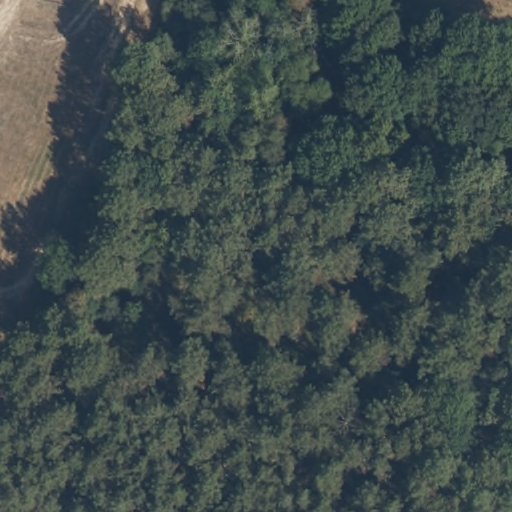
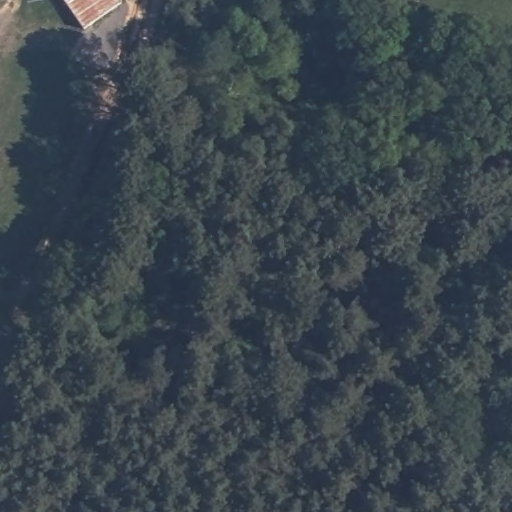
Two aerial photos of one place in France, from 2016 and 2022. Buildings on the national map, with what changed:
new [(121,3),(85,29),(65,0),(119,0),(121,3)]

